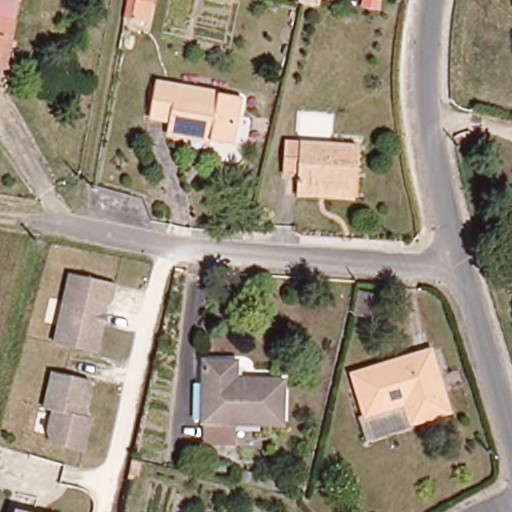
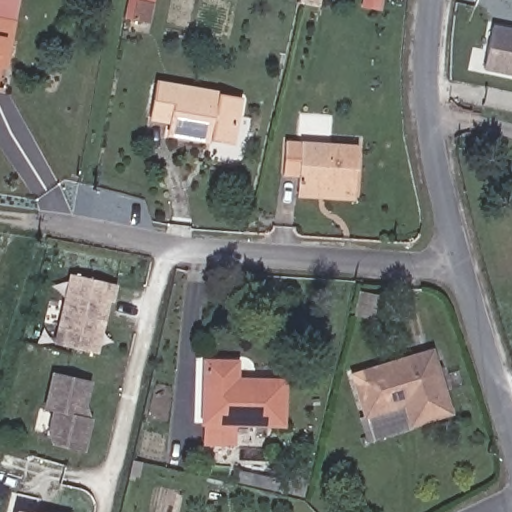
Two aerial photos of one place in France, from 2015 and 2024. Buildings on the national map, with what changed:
unchanged [(0,73),(0,16),(0,0),(21,0),(18,19),(14,39),(9,68),(1,66),(0,73)]
unchanged [(138,0),(152,0),(147,21),(134,19),(138,0)]
unchanged [(309,0),(307,7),(291,3),(292,0),(309,0)]
new [(496,29),(512,33),(512,76),(488,71),(496,29)]
unchanged [(170,124),(172,120),(155,116),(161,86),(240,96),(232,146),(209,143),(169,136),(170,124)]
unchanged [(295,193),(295,184),(296,174),(279,173),(281,140),(355,145),(352,188),(353,196),(295,193)]
unchanged [(94,349),(52,339),(70,270),(115,282),(110,298),(106,297),(94,349)]
unchanged [(363,419),(346,372),(430,345),(452,413),(410,427),(388,433),(369,441),(363,419)]
unchanged [(286,383),(284,424),(236,422),(235,439),(206,439),(209,419),(204,419),(210,359),(236,362),(235,381),(286,383)]
unchanged [(83,453),(54,445),(46,443),(50,432),(55,412),(47,410),(56,374),(91,383),(82,418),(91,420),(83,453)]
unchanged [(15,507),(35,512),(13,512),(15,507)]

